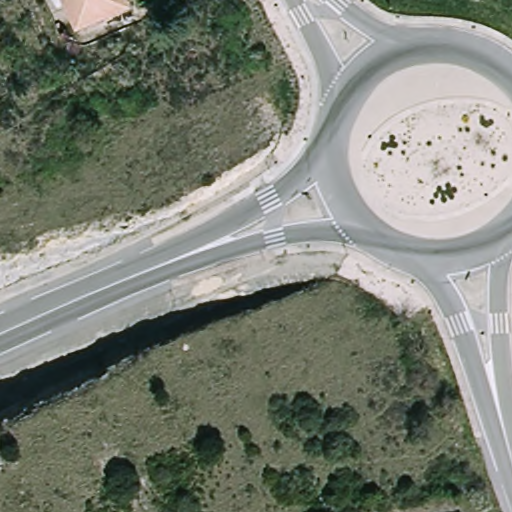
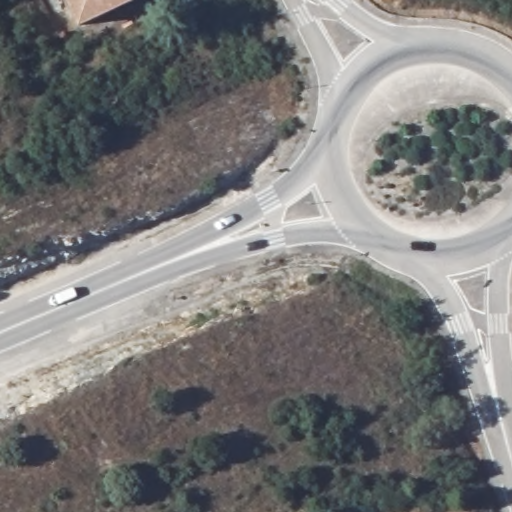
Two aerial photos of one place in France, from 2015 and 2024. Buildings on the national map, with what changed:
unchanged [(71,0),(126,0),(80,18),(71,0)]

